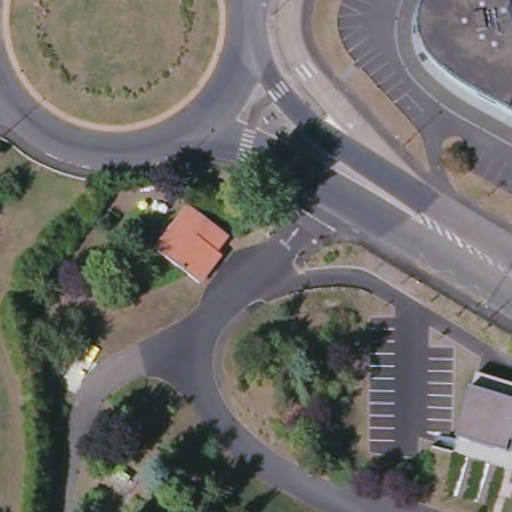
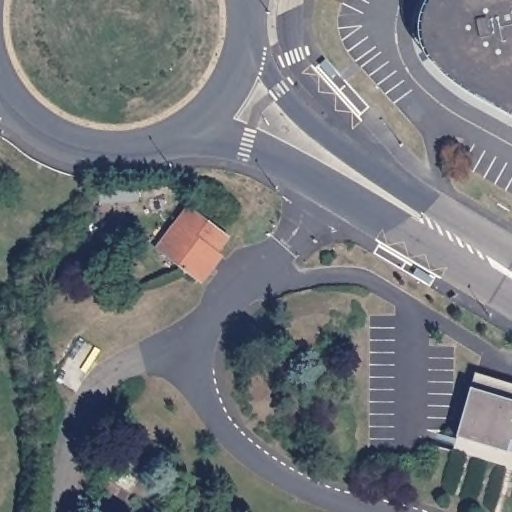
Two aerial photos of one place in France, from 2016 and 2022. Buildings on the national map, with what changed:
unchanged [(469,92),(454,82),(446,76),(439,70),(438,69),(431,61),(427,56),(422,47),(419,40),(419,36),(418,29),(418,21),(420,15),(422,9),(425,4),(427,0),(512,0),(512,117),(487,102),(469,92)]
unchanged [(191,207),(229,236),(208,263),(213,266),(200,283),(158,251),(164,242),(191,207)]
unchanged [(512,390),(512,458),(457,441),(476,378),(512,390)]

